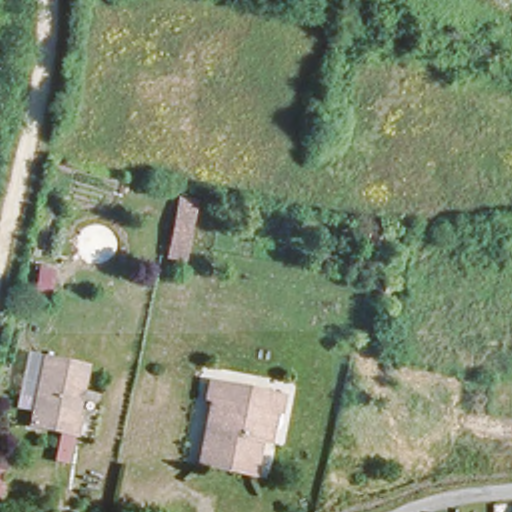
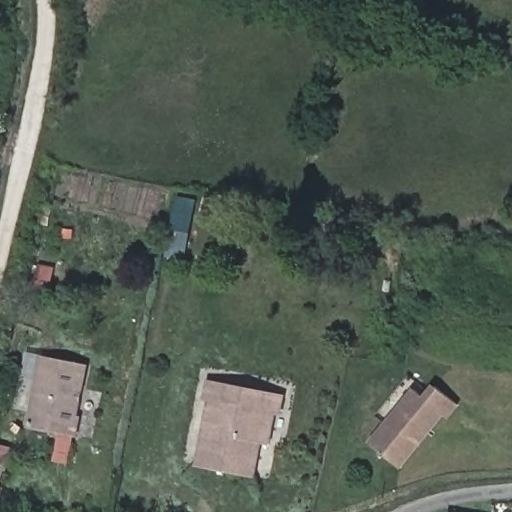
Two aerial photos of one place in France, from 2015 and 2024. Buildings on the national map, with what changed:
unchanged [(177,195),(196,197),(184,261),(165,258),(177,195)]
unchanged [(35,387),(43,355),(86,366),(87,366),(75,413),(78,414),(73,432),(71,432),(70,432),(26,420),(35,387)]
unchanged [(252,470),(193,458),(206,395),(201,393),(205,376),(222,379),(260,386),(277,390),(281,390),(277,406),(275,405),(268,437),(266,437),(259,436),(252,470)]
new [(413,388),(422,396),(432,385),(458,405),(450,418),(445,415),(400,469),(370,442),(413,388)]

